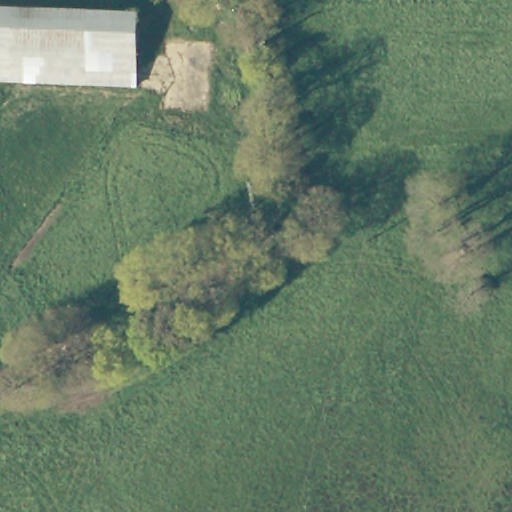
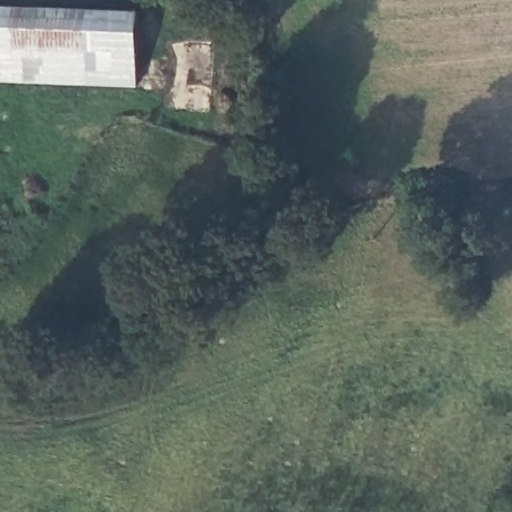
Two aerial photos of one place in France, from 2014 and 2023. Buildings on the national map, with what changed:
unchanged [(140,32),(139,85),(0,83),(0,10),(141,12),(140,32)]

